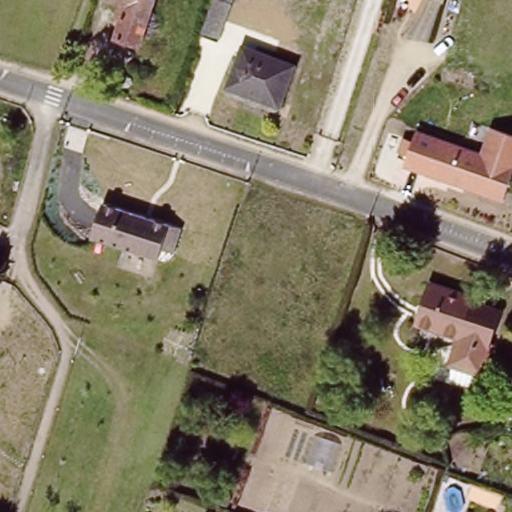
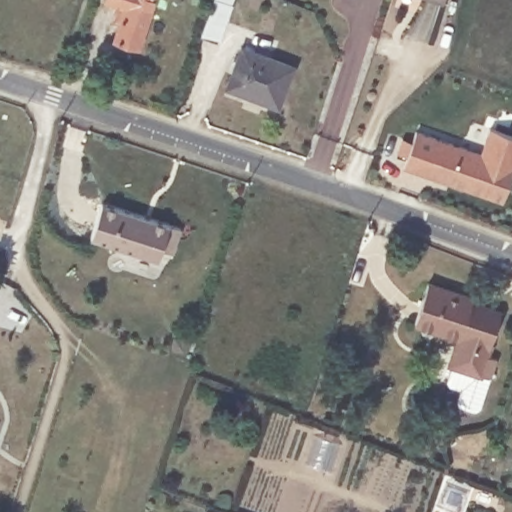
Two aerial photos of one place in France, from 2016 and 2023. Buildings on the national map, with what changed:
unchanged [(137,51),(115,43),(120,26),(114,24),(119,7),(107,2),(107,0),(155,0),(137,51)]
unchanged [(212,0),(226,0),(226,1),(231,3),(219,40),(200,35),(212,0)]
unchanged [(224,93),(245,43),(293,64),(272,113),(224,93)]
unchanged [(405,160),(395,157),(400,142),(409,146),(413,134),(436,142),(479,156),(487,130),(492,131),(512,138),(512,171),(502,203),(467,192),(424,178),(401,171),(405,160)]
unchanged [(102,200),(180,229),(172,253),(160,249),(157,259),(90,235),(102,200)]
unchanged [(445,328),(417,318),(430,278),(458,288),(445,328)]
unchanged [(470,293),(470,297),(499,307),(478,370),(450,360),(457,332),(445,328),(458,288),(470,293)]

